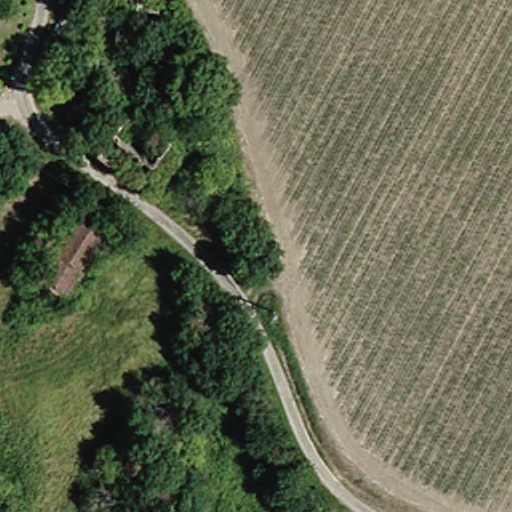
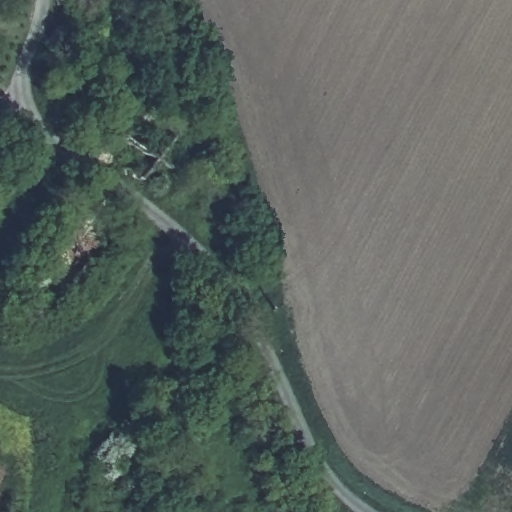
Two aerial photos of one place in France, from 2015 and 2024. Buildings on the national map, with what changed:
unchanged [(96,263),(69,244),(93,206),(111,177),(125,188),(106,216),(121,226),(96,263)]
unchanged [(69,244),(96,263),(77,292),(49,275),(69,244)]

